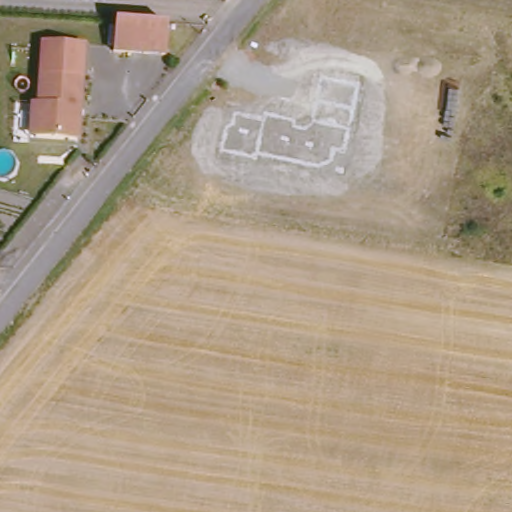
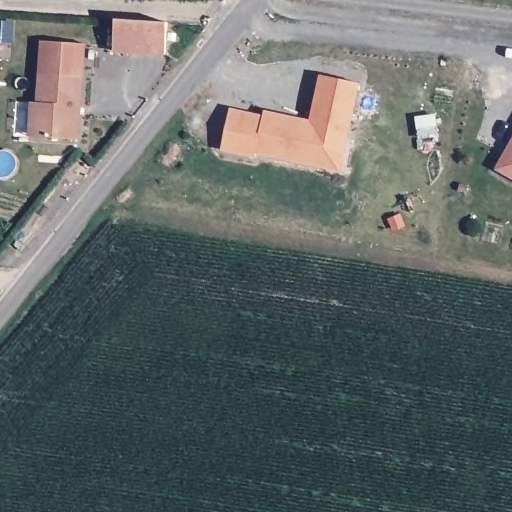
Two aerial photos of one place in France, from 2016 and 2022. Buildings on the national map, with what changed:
unchanged [(166,24),(164,56),(113,52),(115,21),(166,24)]
unchanged [(41,42),(83,46),(77,142),(35,139),(29,138),(31,104),(37,105),(41,42)]
new [(259,155),(258,158),(223,151),(232,109),(264,115),(265,111),(312,121),(322,75),(361,84),(341,172),(259,155)]
new [(512,143),(512,177),(497,169),(512,143)]

